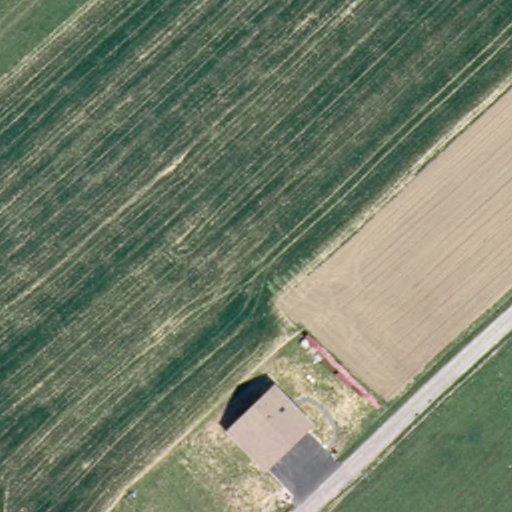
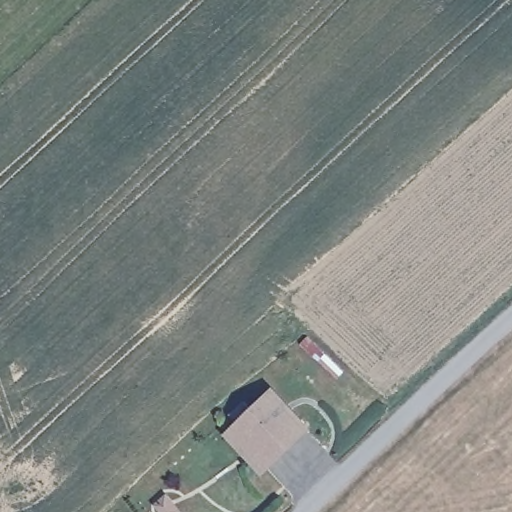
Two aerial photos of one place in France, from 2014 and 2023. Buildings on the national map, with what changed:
unchanged [(313,425),(265,472),(227,431),(275,384),(313,425)]

